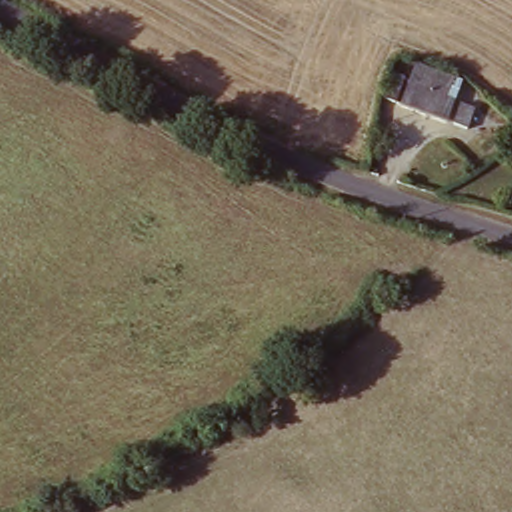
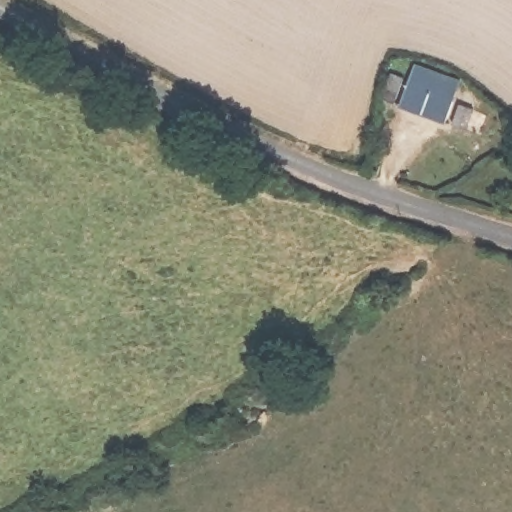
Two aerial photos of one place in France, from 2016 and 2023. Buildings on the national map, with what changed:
unchanged [(452,80),(445,96),(452,99),(443,120),(403,104),(416,66),(452,80)]
unchanged [(402,77),(393,100),(383,96),(390,74),(402,77)]
unchanged [(476,107),(468,129),(454,123),(461,101),(476,107)]

